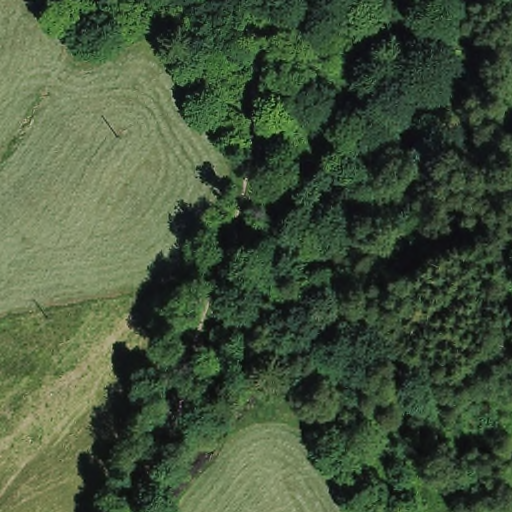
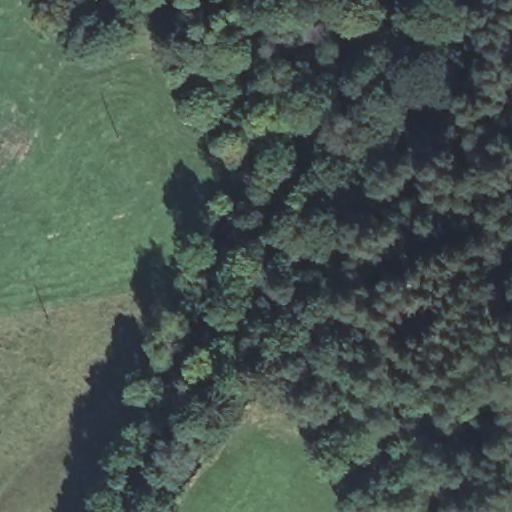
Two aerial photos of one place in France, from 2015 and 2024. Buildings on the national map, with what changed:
[]

